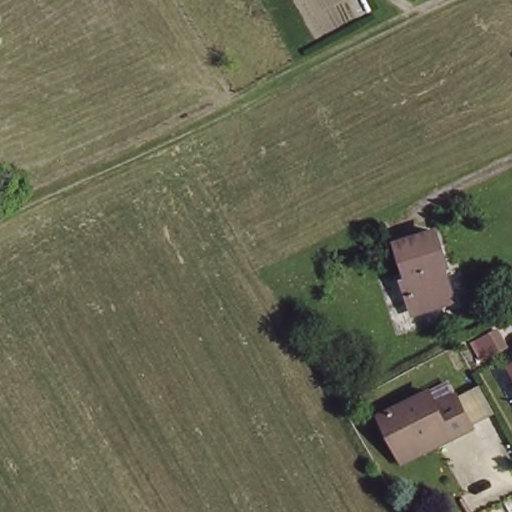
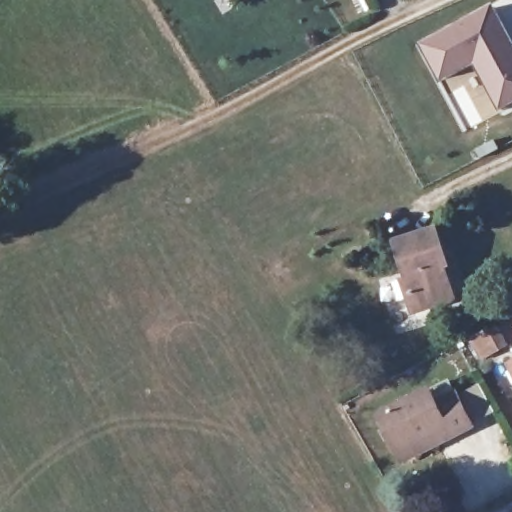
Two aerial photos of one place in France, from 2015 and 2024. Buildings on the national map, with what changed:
new [(500,111),(475,65),(440,83),(419,44),(493,4),(512,39),(512,105),(500,111)]
unchanged [(452,306),(413,310),(408,239),(445,234),(452,306)]
unchanged [(403,450),(385,413),(433,386),(442,401),(460,390),(477,421),(458,432),(410,462),(403,450)]

